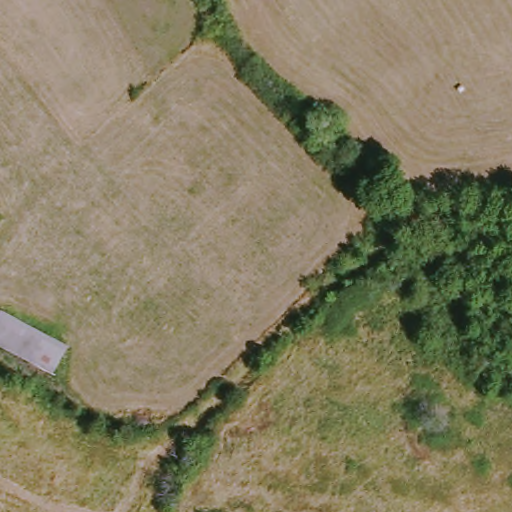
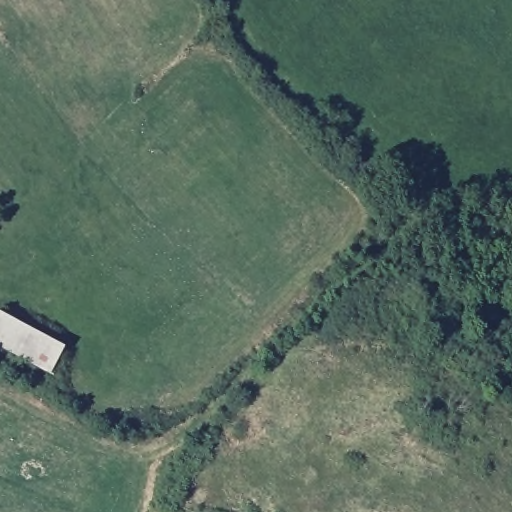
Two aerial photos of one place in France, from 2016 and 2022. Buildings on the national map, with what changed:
unchanged [(0,315),(70,349),(58,374),(0,345),(0,316),(0,315)]

